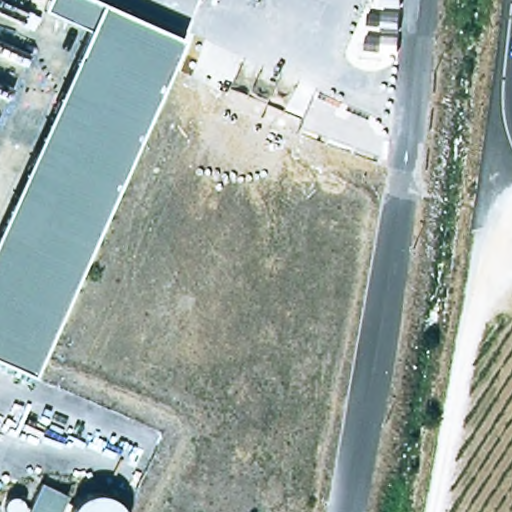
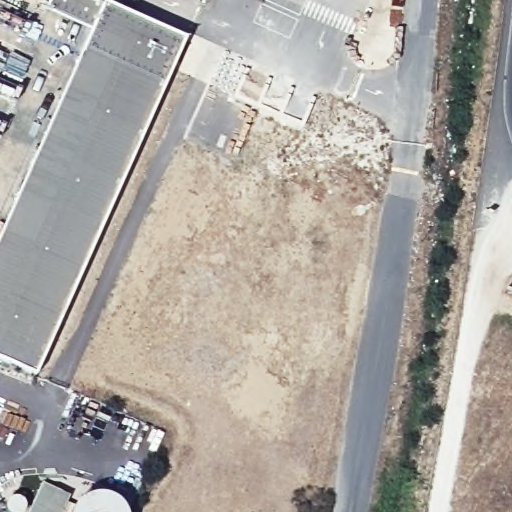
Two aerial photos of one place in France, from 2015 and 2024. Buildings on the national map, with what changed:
unchanged [(27,381),(0,370),(0,222),(95,7),(179,45),(27,381)]
unchanged [(62,500),(60,507),(66,510),(66,512),(19,512),(20,508),(26,509),(35,488),(62,500)]

